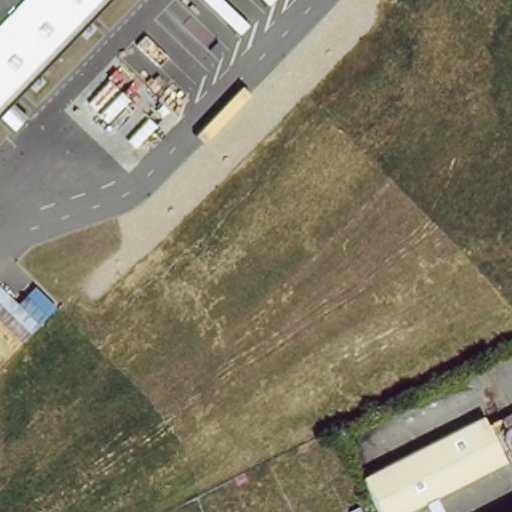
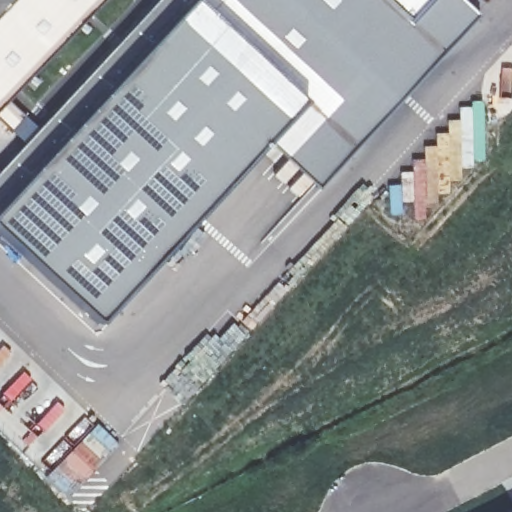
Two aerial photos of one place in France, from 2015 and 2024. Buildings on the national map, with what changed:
unchanged [(0,0),(105,0),(0,109),(0,0)]
new [(316,187),(263,145),(87,333),(0,257),(0,204),(183,10),(172,0),(451,0),(476,23),(316,187)]
unchanged [(475,419),(499,468),(406,512),(374,512),(358,480),(475,419)]

